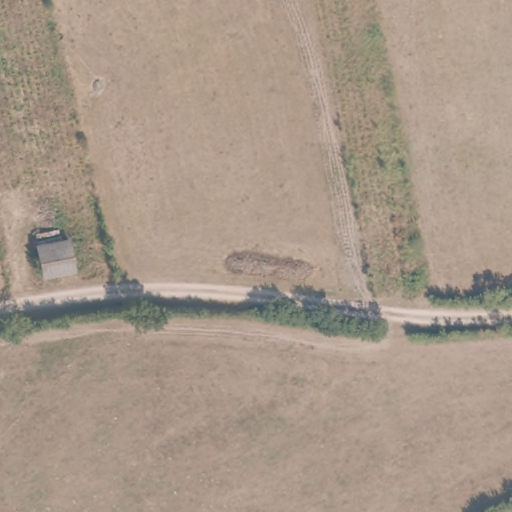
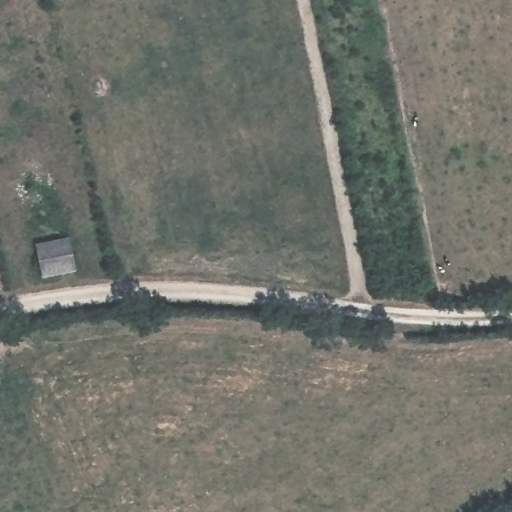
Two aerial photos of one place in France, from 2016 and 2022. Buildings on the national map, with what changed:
unchanged [(66,242),(71,274),(40,278),(35,246),(66,242)]

